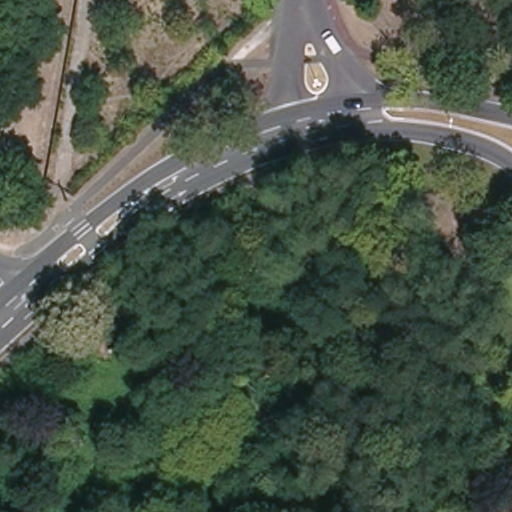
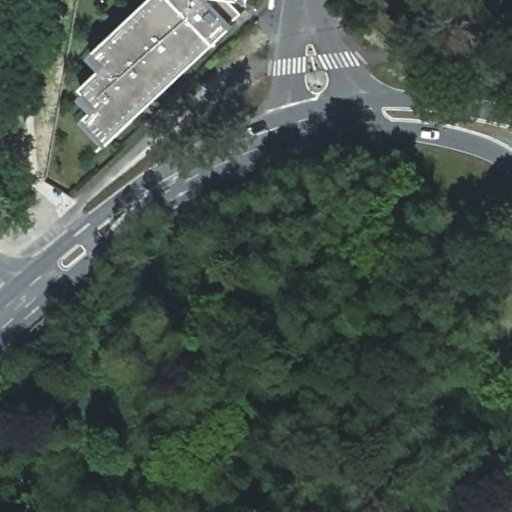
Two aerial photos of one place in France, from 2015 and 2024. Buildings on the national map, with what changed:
new [(83,91),(88,85),(84,82),(103,65),(91,51),(147,0),(239,0),(245,9),(237,19),(111,137),(89,111),(95,104),(83,91)]
unchanged [(1,187),(0,188),(0,186),(1,187)]

